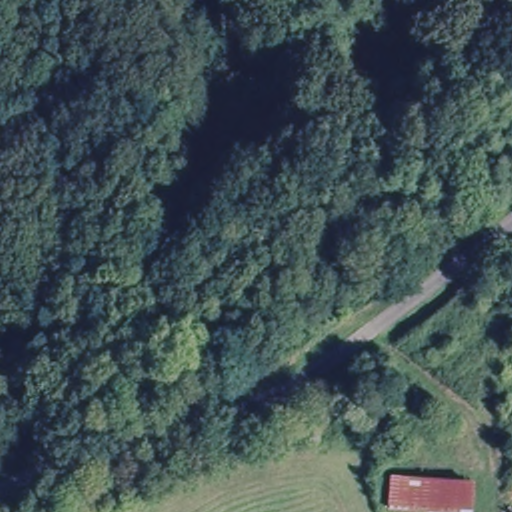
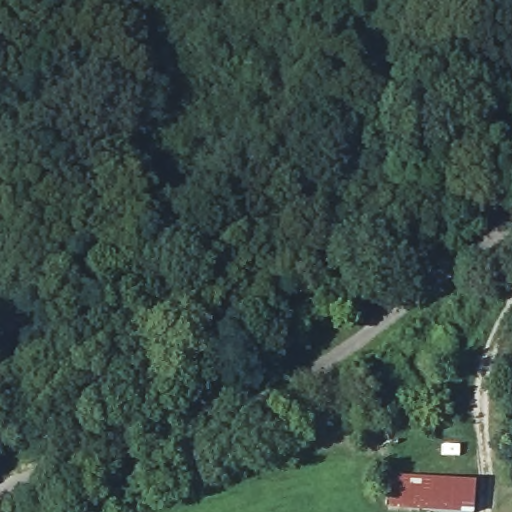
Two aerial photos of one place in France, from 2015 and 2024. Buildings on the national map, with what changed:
unchanged [(390,507),(393,476),(476,480),(474,511),(390,507)]

